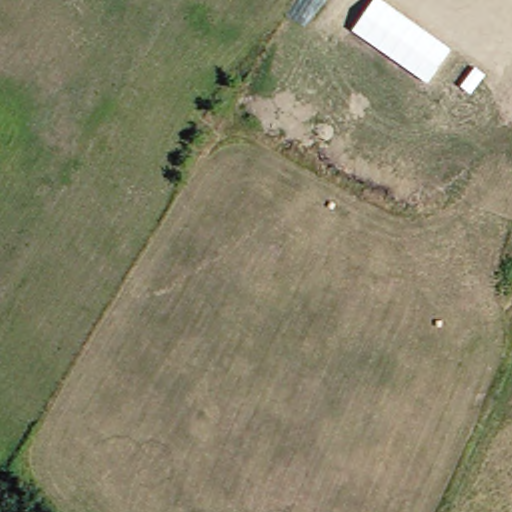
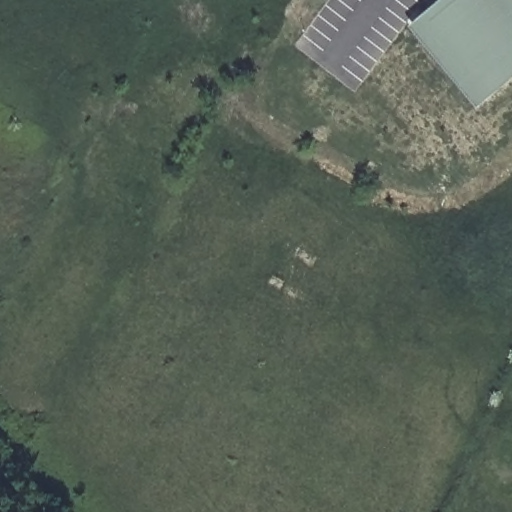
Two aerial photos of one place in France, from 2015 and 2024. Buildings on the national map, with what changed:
demolished [(380,0),(451,49),(427,85),(350,33),(371,0),(380,0)]
new [(411,25),(441,0),(512,0),(512,79),(478,107),(411,25)]

